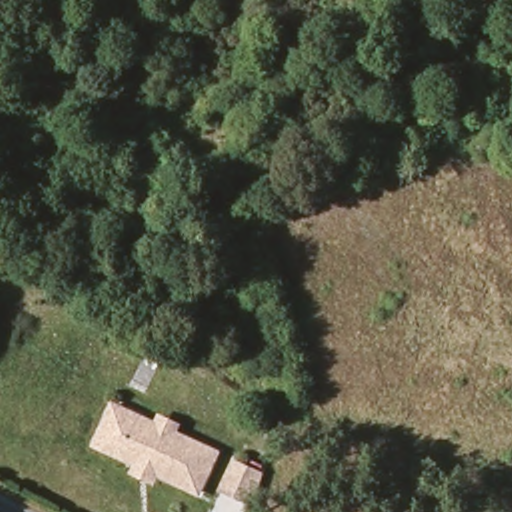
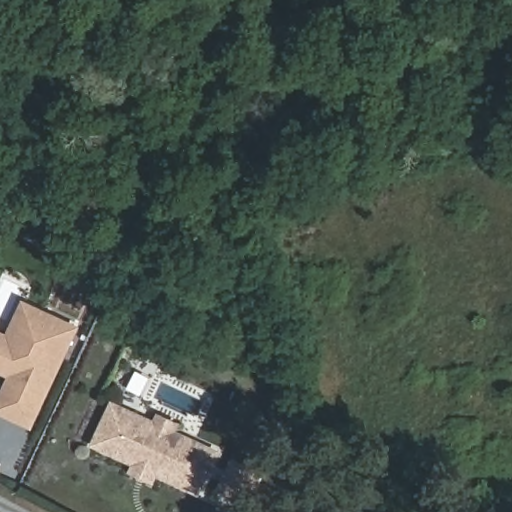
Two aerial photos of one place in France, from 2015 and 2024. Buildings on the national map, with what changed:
new [(0,414),(0,393),(7,378),(0,375),(0,330),(7,332),(23,298),(81,326),(33,430),(0,414)]
unchanged [(128,470),(131,465),(91,444),(112,402),(153,423),(158,413),(179,425),(175,434),(212,453),(191,495),(153,475),(148,482),(128,470)]
unchanged [(224,481),(238,454),(266,470),(262,481),(257,498),(224,481)]

